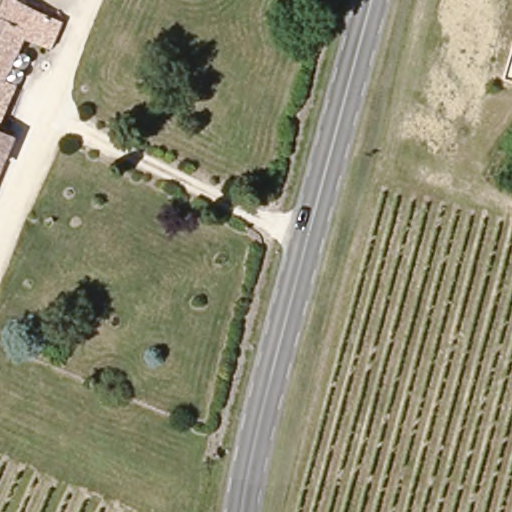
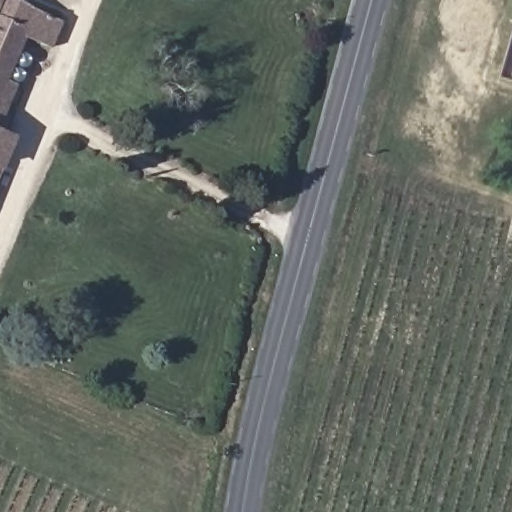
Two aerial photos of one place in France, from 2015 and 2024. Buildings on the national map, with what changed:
unchanged [(51,44),(21,33),(0,74),(0,0),(23,0),(60,15),(51,44)]
unchanged [(512,64),(512,72),(511,72),(512,64)]
unchanged [(0,138),(0,130),(3,131),(0,138)]

